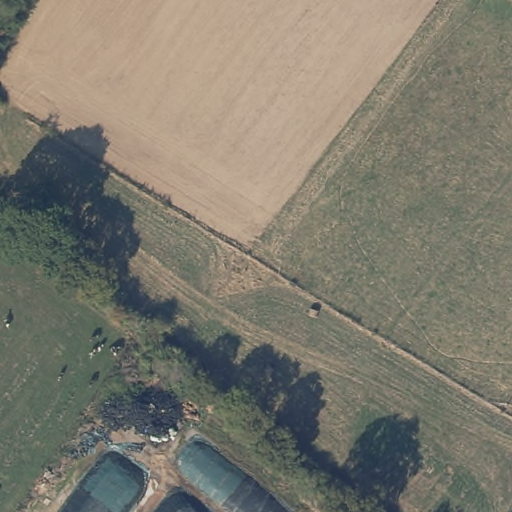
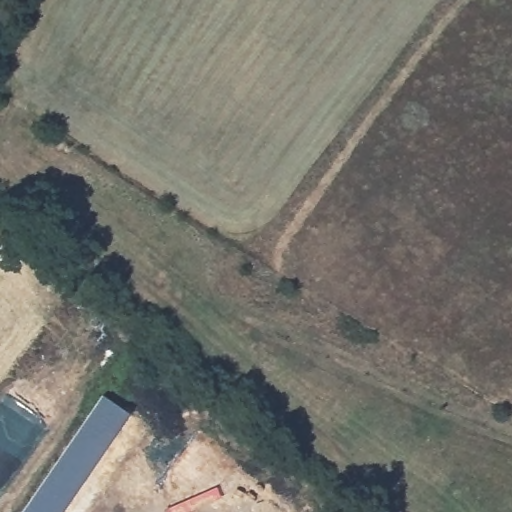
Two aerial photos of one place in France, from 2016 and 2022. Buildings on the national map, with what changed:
new [(130,411),(62,512),(21,512),(102,393),(130,411)]

